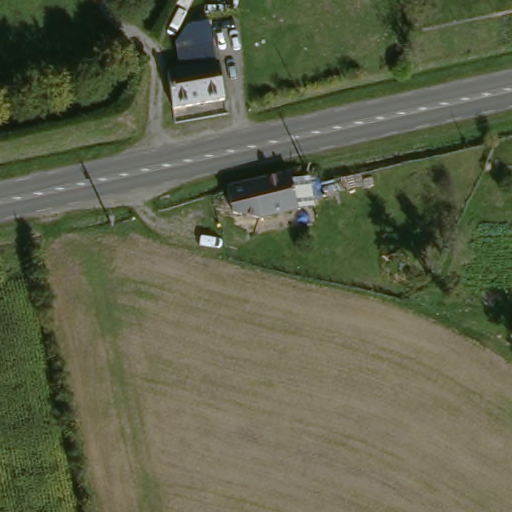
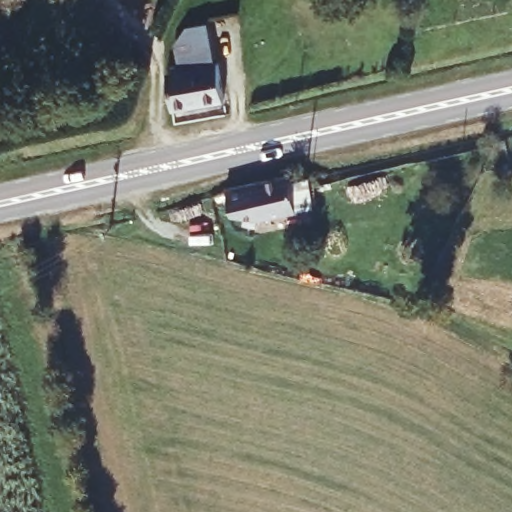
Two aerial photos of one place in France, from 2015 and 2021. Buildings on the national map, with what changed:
unchanged [(164,73),(187,70),(185,56),(207,52),(209,67),(215,66),(220,100),(169,108),(164,73)]
unchanged [(281,181),(292,178),(297,203),(286,205),(287,210),(248,218),(222,213),(217,189),(280,175),(281,181)]
unchanged [(299,243),(304,233),(319,240),(315,249),(299,243)]

